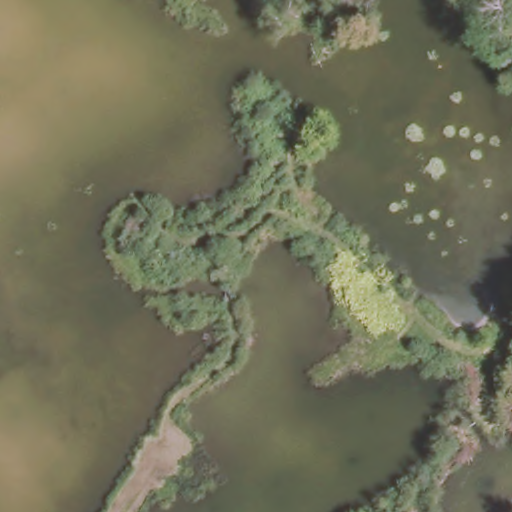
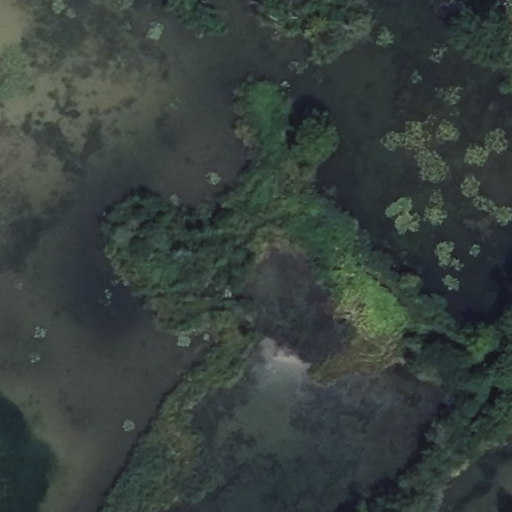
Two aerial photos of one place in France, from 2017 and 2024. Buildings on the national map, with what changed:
unchanged [(497,36),(512,23),(512,52),(497,36)]

